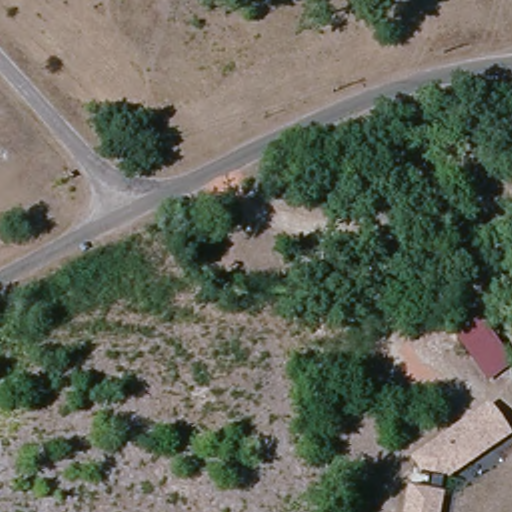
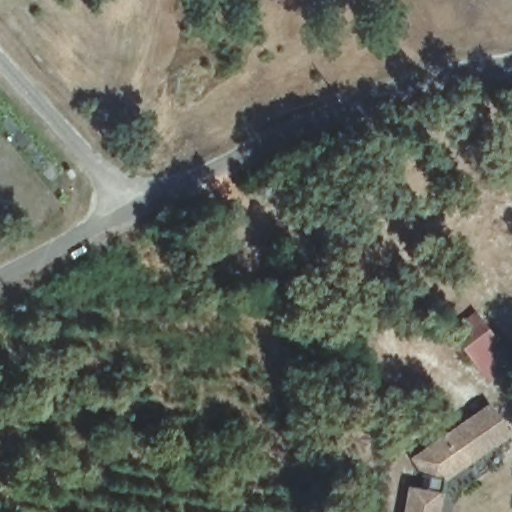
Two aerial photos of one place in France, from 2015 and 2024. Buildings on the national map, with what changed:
unchanged [(512,361),(512,365),(488,382),(459,341),(484,323),(512,361)]
unchanged [(511,432),(448,474),(442,512),(402,512),(405,489),(421,474),(408,461),(489,401),(511,432)]

